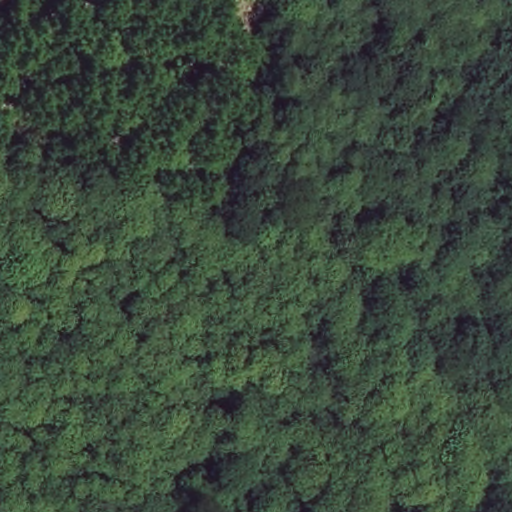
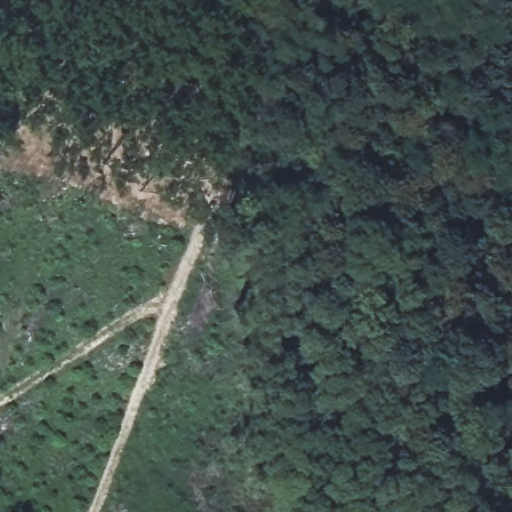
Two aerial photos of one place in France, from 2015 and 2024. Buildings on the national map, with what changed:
[]

